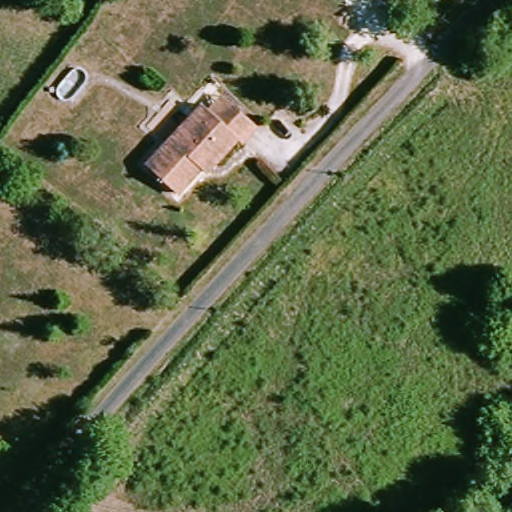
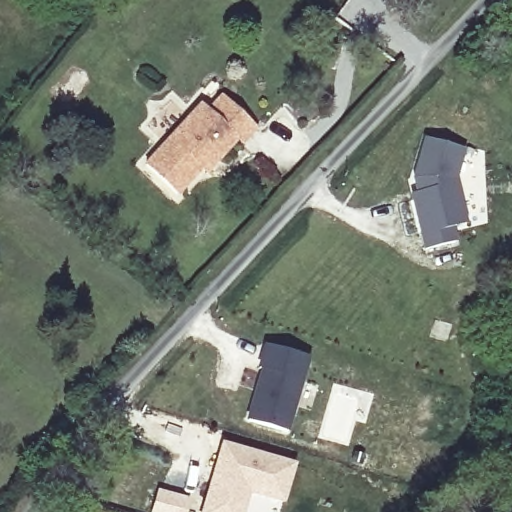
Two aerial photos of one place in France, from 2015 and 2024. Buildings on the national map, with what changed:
unchanged [(206,169),(180,194),(150,162),(209,105),(216,112),(230,98),(261,131),(247,145),(243,141),(216,168),(210,174),(206,169)]
new [(452,224),(449,225),(452,239),(424,248),(410,198),(416,196),(410,177),(420,137),(458,147),(450,177),(458,206),(462,221),(452,224)]
new [(255,368),(257,359),(262,344),(305,355),(284,430),(245,419),(260,368),(255,368)]
new [(295,465),(284,499),(249,490),(243,512),(204,512),(213,478),(220,481),(225,462),(220,460),(224,444),(295,465)]

